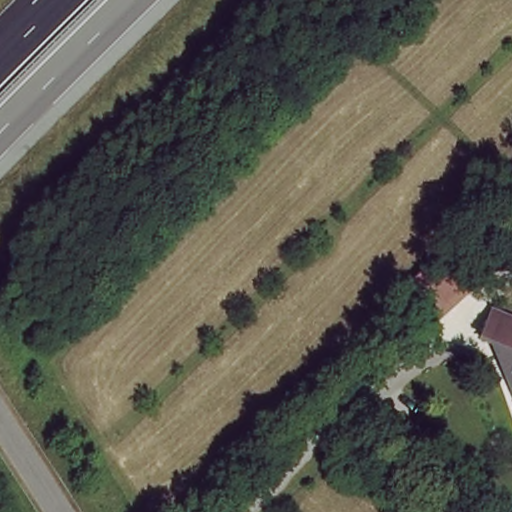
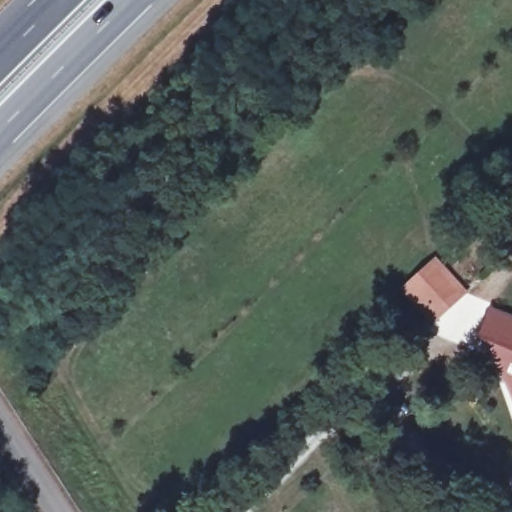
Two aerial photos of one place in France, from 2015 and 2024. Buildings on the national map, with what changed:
new [(403,288),(437,257),(469,292),(435,324),(403,288)]
unchanged [(497,351),(476,342),(486,315),(512,325),(512,390),(497,351)]

